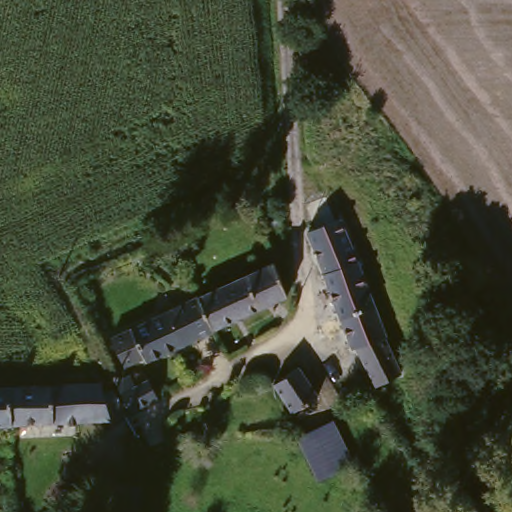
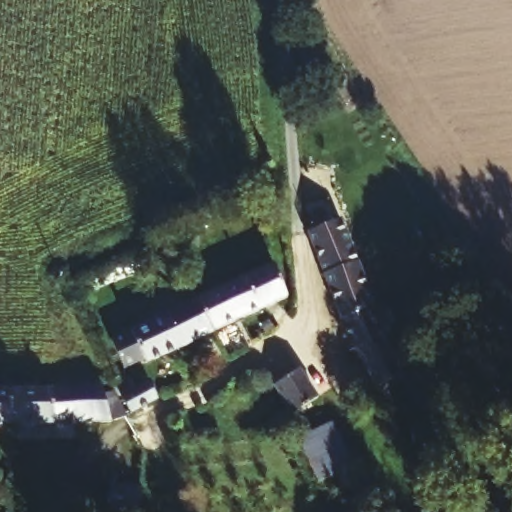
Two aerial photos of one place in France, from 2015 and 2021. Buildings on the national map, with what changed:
unchanged [(300,234),(317,225),(333,218),(371,305),(338,320),(300,234)]
unchanged [(284,305),(205,337),(189,297),(268,261),(284,305)]
unchanged [(169,331),(161,310),(179,302),(189,297),(205,337),(176,349),(169,331)]
unchanged [(374,313),(397,374),(369,388),(366,390),(344,337),(338,320),(371,305),(374,313)]
unchanged [(143,365),(136,357),(128,361),(114,368),(103,339),(124,328),(161,310),(169,331),(176,349),(143,365)]
unchanged [(313,401),(289,413),(271,378),(296,366),(313,401)]
unchanged [(103,415),(91,422),(0,428),(0,392),(96,387),(103,415)]
unchanged [(131,397),(140,393),(148,410),(124,421),(113,394),(121,390),(127,387),(131,397)]
unchanged [(328,425),(341,462),(344,469),(314,485),(292,438),(325,423),(328,425)]
unchanged [(101,512),(105,492),(134,498),(131,512),(101,512)]

